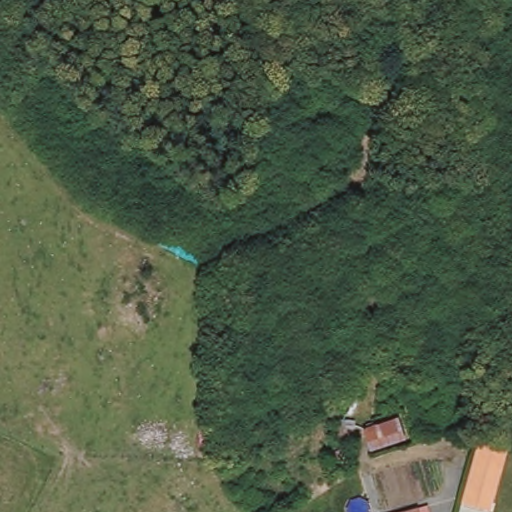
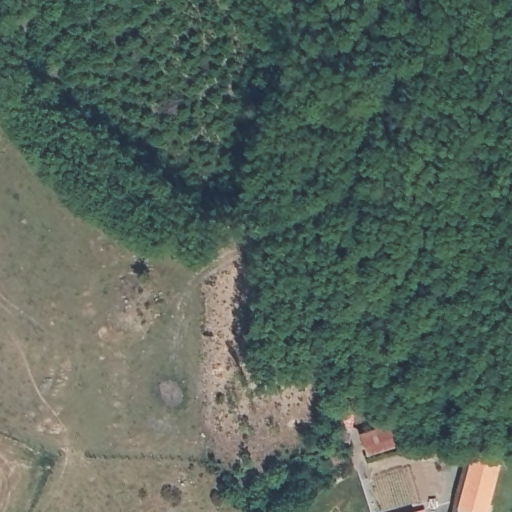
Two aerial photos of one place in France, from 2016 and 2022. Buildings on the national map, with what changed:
unchanged [(473,449),(504,450),(487,512),(476,512),(457,507),(473,449)]
unchanged [(419,511),(419,512),(417,512),(419,511)]

